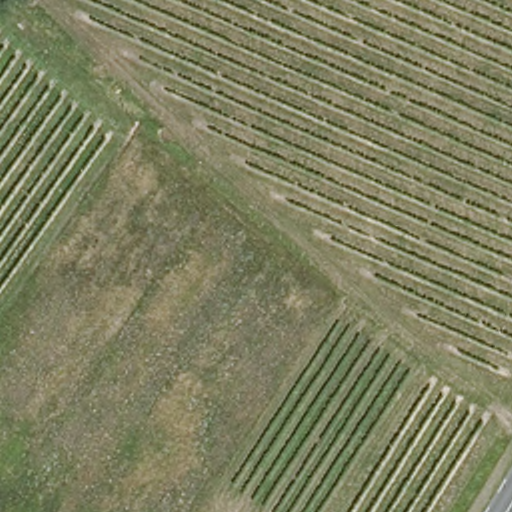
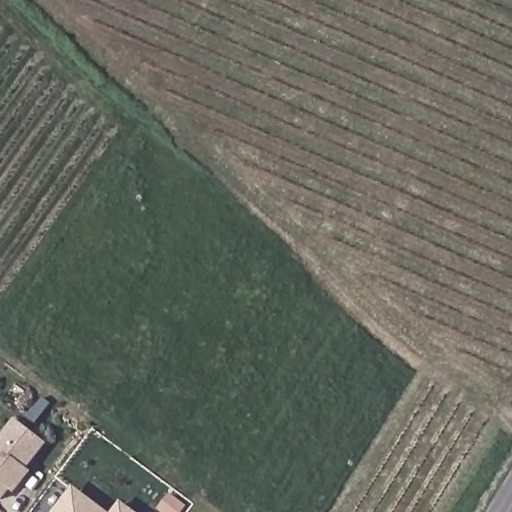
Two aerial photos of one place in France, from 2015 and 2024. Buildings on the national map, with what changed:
new [(28,468),(32,471),(15,493),(11,490),(2,502),(0,501),(0,439),(16,418),(48,443),(28,468)]
new [(63,506),(74,491),(97,508),(102,512),(59,512),(63,506)]
new [(121,505),(130,512),(116,512),(121,505)]

